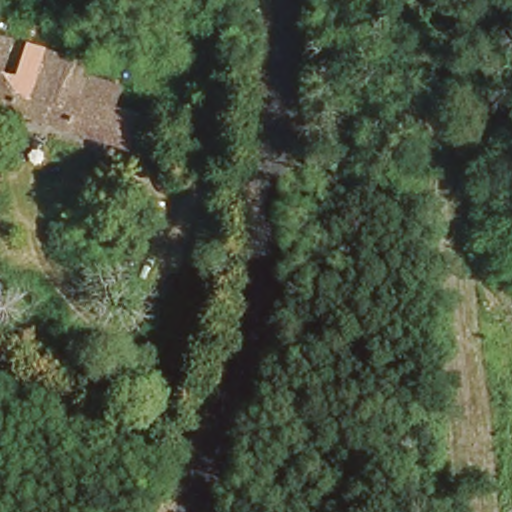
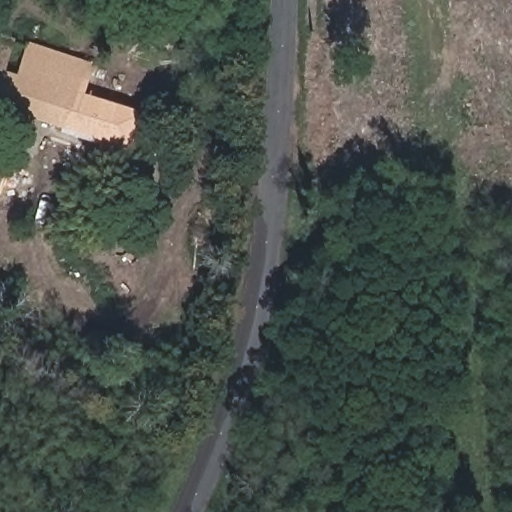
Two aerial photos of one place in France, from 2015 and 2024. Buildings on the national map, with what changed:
unchanged [(4,62),(22,68),(30,46),(91,64),(90,67),(90,69),(89,72),(122,82),(116,101),(137,108),(136,110),(128,141),(0,101),(0,38),(10,40),(4,62)]

